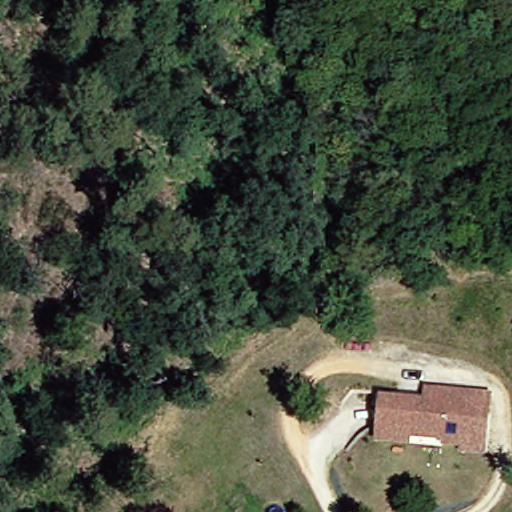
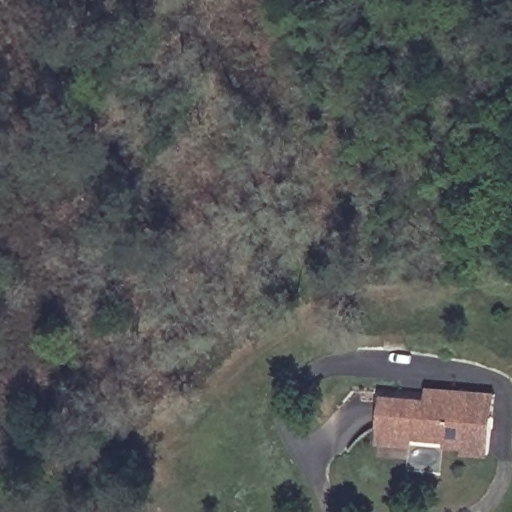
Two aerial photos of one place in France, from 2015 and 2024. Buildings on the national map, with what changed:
unchanged [(375,437),(377,422),(380,392),(425,397),(426,386),(470,391),(494,394),(492,415),(488,452),(463,450),(463,445),(443,443),(444,438),(409,434),(408,440),(375,437)]

